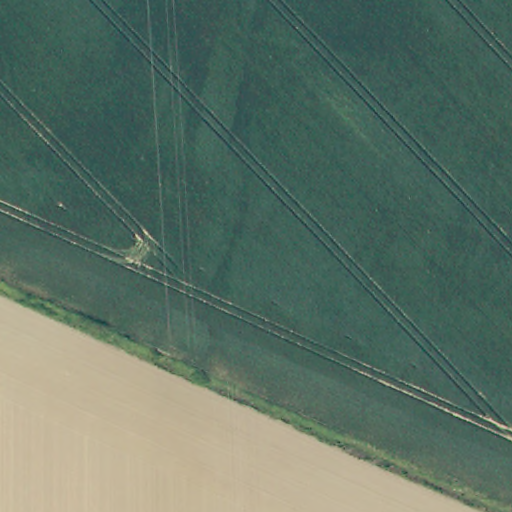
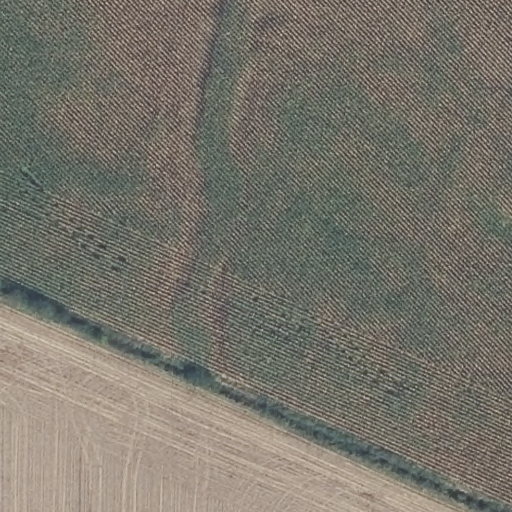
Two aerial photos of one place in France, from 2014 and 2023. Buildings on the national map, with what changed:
[]

